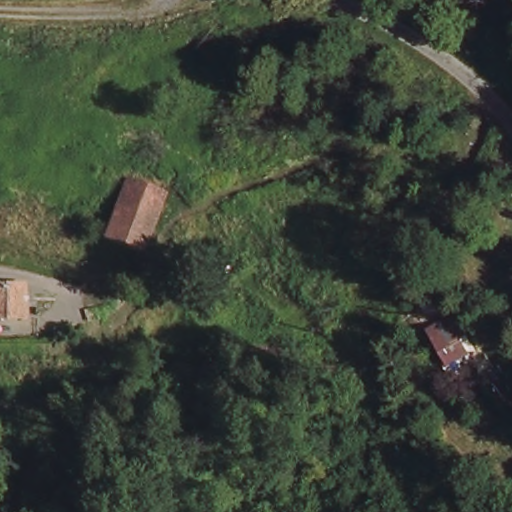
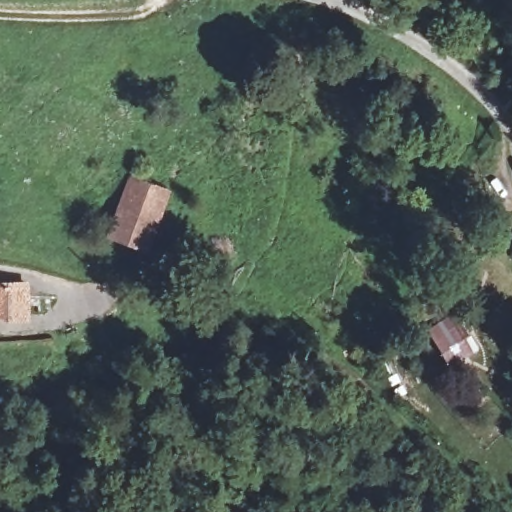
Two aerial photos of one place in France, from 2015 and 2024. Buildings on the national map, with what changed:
unchanged [(170,194),(145,255),(102,237),(129,179),(170,194)]
unchanged [(0,317),(0,285),(28,284),(23,316),(0,317)]
unchanged [(469,352),(448,368),(426,340),(447,322),(469,352)]

